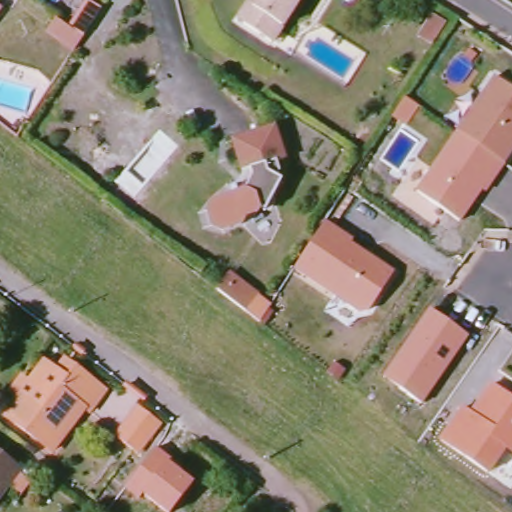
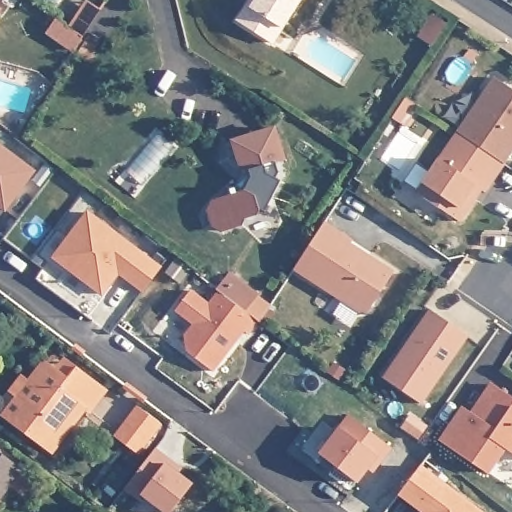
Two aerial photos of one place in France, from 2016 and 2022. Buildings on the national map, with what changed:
unchanged [(244,27),(251,15),(246,10),(255,0),(306,0),(275,44),(244,27)]
unchanged [(86,2),(98,10),(80,37),(71,50),(44,32),(52,20),(67,30),(86,2)]
unchanged [(443,21),(430,42),(417,34),(431,14),(443,21)]
unchanged [(501,160),(503,162),(485,189),(481,186),(459,218),(415,190),(492,73),(512,86),(512,145),(501,160)]
unchanged [(280,130),(290,161),(282,166),(285,174),(281,182),(286,187),(268,218),(263,215),(260,219),(248,221),(245,231),(227,234),(217,230),(211,208),(218,197),(230,195),(235,185),(235,177),(246,174),(238,142),(280,130)]
new [(0,143),(35,170),(5,212),(0,209),(0,143)]
new [(50,257),(87,210),(161,266),(142,293),(117,276),(102,297),(50,257)]
unchanged [(367,307),(359,310),(291,267),(325,220),(352,238),(349,242),(394,269),(367,307)]
demolished [(257,320),(215,288),(230,270),(270,302),(257,320)]
new [(191,290),(208,303),(217,291),(215,290),(230,271),(270,305),(248,335),(245,332),(213,371),(187,351),(185,335),(192,325),(174,311),(191,290)]
unchanged [(420,401),(382,375),(427,307),(466,333),(420,401)]
unchanged [(65,385),(72,375),(105,400),(86,424),(81,420),(53,456),(13,426),(5,421),(30,388),(43,370),(65,385)]
unchanged [(505,447),(487,471),(438,438),(461,404),(470,409),(490,380),(512,396),(512,452),(505,447)]
unchanged [(140,455),(117,437),(138,409),(161,426),(140,455)]
new [(374,471),(370,467),(358,482),(319,453),(337,427),(346,413),(391,448),(374,471)]
unchanged [(0,498),(0,446),(25,465),(0,498)]
unchanged [(171,462),(168,465),(192,484),(169,512),(163,512),(144,496),(138,501),(123,490),(156,450),(171,462)]
new [(421,465),(483,512),(420,512),(397,496),(421,465)]

